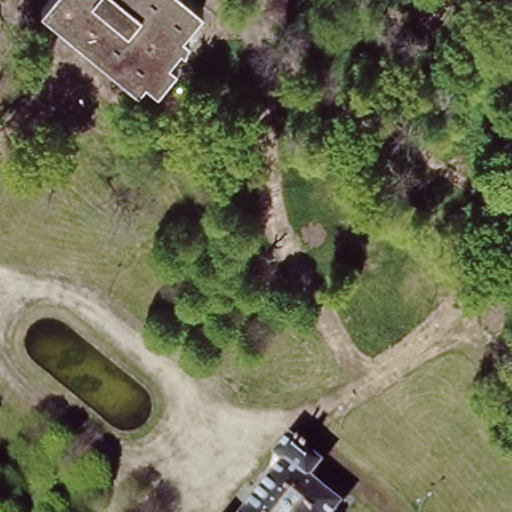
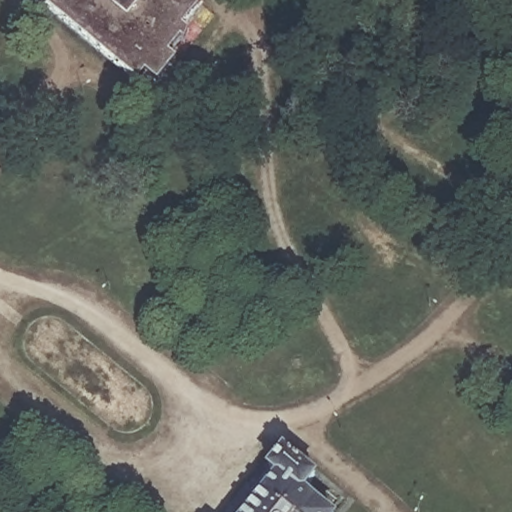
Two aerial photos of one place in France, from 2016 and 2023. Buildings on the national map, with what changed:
unchanged [(167,45),(179,58),(162,80),(145,66),(135,79),(44,2),(45,0),(191,0),(197,5),(167,45)]
unchanged [(455,197),(489,225),(463,252),(426,220),(455,197)]
unchanged [(270,460),(286,443),(322,471),(308,493),(327,512),(252,512),(283,475),(270,460)]

